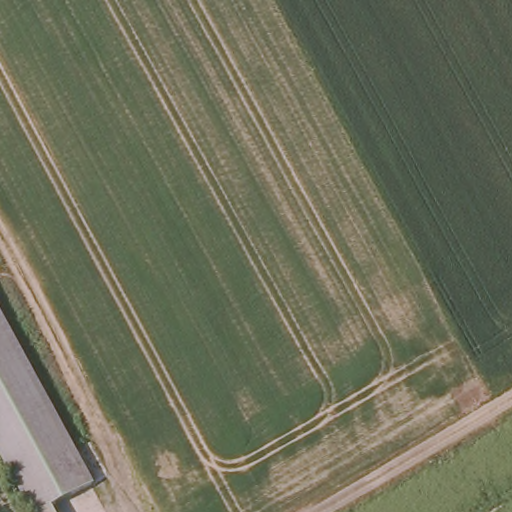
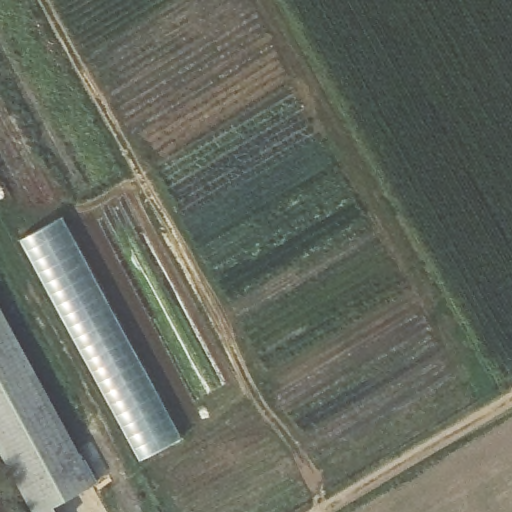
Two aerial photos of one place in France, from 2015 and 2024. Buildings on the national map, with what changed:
new [(109,403),(106,383),(100,386),(20,240),(61,218),(180,438),(173,442),(170,437),(157,445),(160,450),(140,460),(109,403)]
unchanged [(35,512),(0,449),(0,312),(93,480),(52,504),(56,512),(35,512)]

